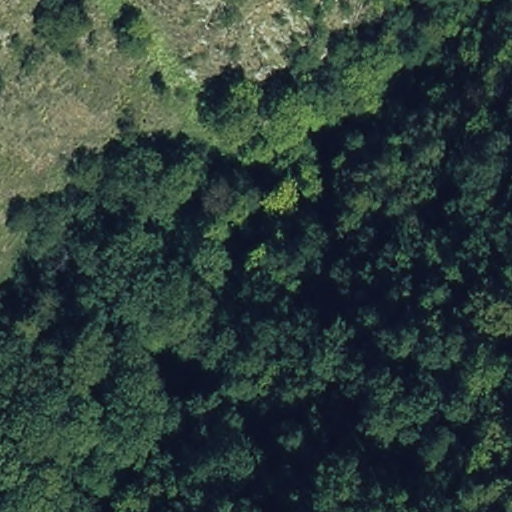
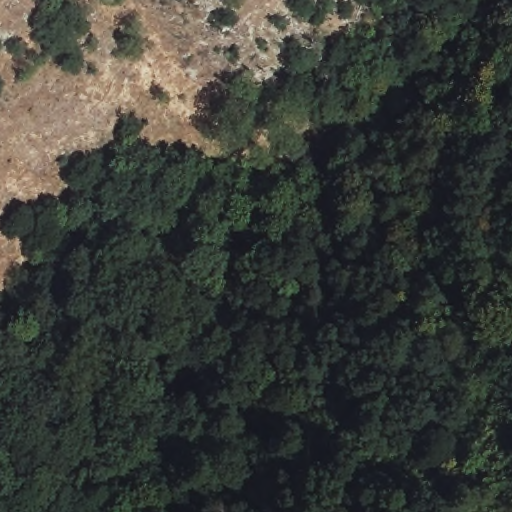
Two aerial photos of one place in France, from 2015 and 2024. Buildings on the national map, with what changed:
[]

